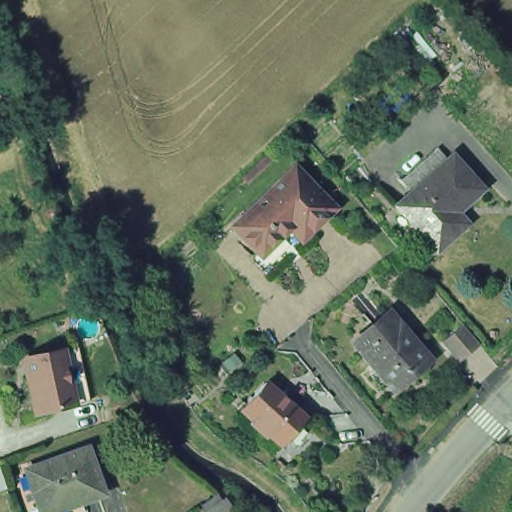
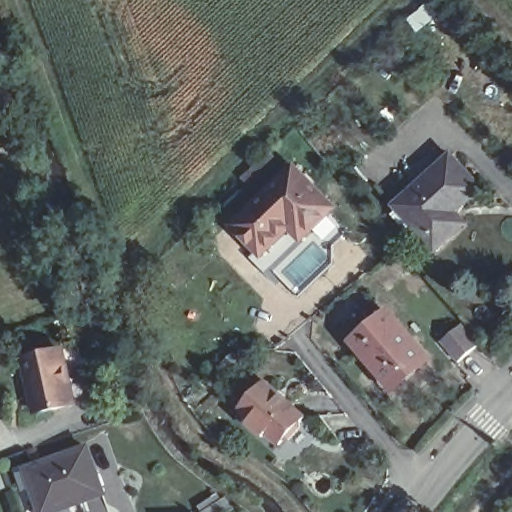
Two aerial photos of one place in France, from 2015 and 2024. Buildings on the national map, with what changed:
unchanged [(448,152),(479,184),(451,211),(449,208),(449,207),(440,215),(454,231),(434,247),(393,202),(422,176),(448,152)]
unchanged [(293,164),(331,204),(264,269),(248,253),(255,246),(232,222),(293,164)]
unchanged [(382,311),(394,325),(396,323),(412,342),(411,344),(424,358),(389,387),(349,340),(382,311)]
unchanged [(478,349),(458,366),(441,346),(461,329),(478,349)]
unchanged [(8,378),(5,364),(41,356),(58,353),(69,407),(53,411),(18,419),(8,378)]
unchanged [(261,381),(301,417),(296,422),(296,427),(283,443),(278,443),(273,449),(244,423),(247,420),(235,409),(261,381)]
unchanged [(105,494),(81,502),(79,499),(44,512),(41,512),(34,490),(36,490),(29,471),(28,472),(26,470),(88,448),(105,494)]
unchanged [(0,491),(0,467),(7,488),(0,491)]
unchanged [(231,504),(234,510),(231,512),(206,512),(226,498),(231,504)]

